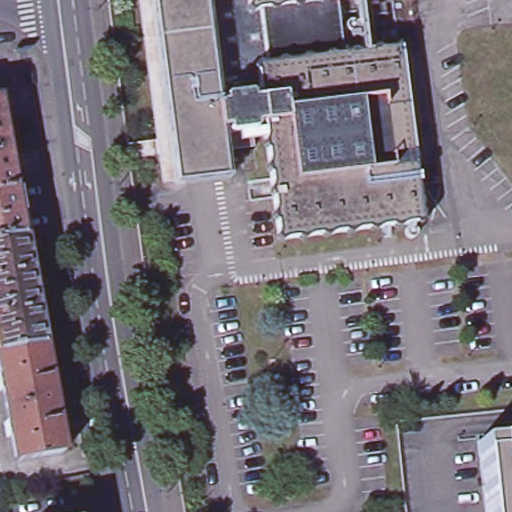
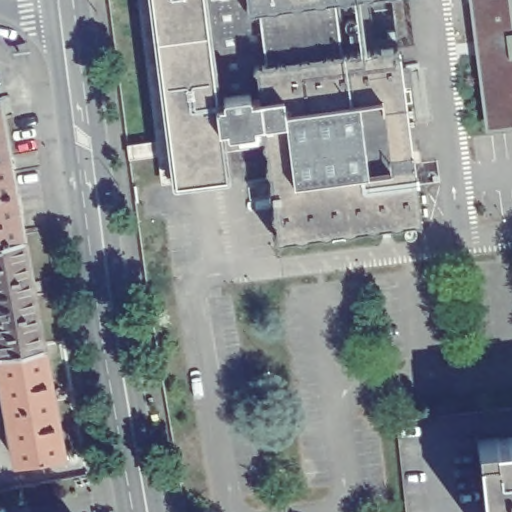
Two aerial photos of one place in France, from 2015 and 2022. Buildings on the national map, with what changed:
unchanged [(256,131),(257,138),(253,139),(255,155),(235,157),(233,141),(229,141),(228,136),(222,136),(228,184),(175,191),(152,0),(374,0),(339,5),(346,61),(405,53),(426,228),(280,248),(265,130),(256,131)]
new [(470,0),(512,0),(512,127),(485,131),(470,0)]
unchanged [(2,96),(5,116),(4,117),(25,233),(0,237),(0,96),(2,96)]
unchanged [(45,341),(0,349),(0,237),(25,233),(45,341)]
unchanged [(45,341),(46,346),(43,347),(50,385),(53,384),(56,405),(54,405),(60,443),(63,442),(65,449),(17,457),(0,358),(0,349),(45,341)]
unchanged [(485,443),(512,440),(512,512),(491,512),(485,443)]

